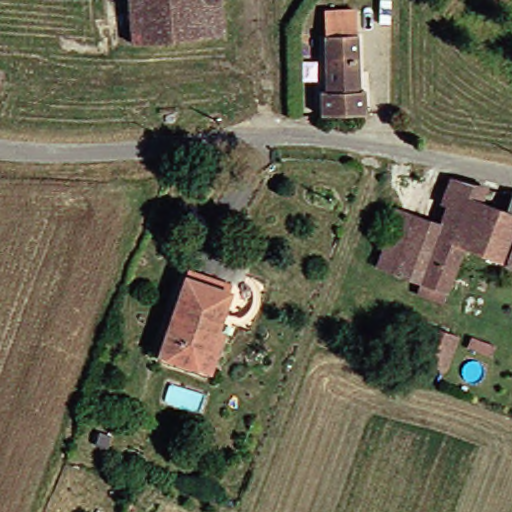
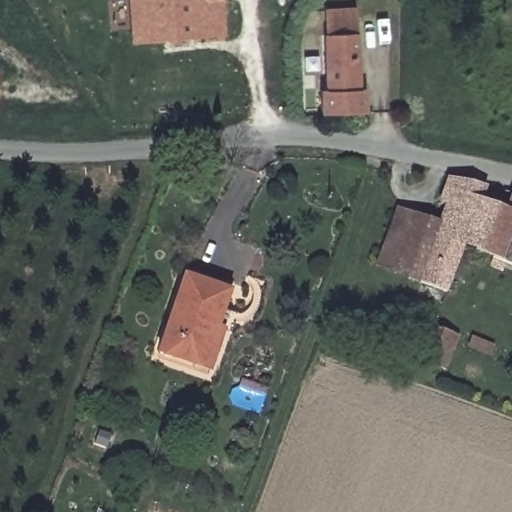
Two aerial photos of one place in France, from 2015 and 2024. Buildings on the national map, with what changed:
unchanged [(224,31),(131,39),(129,0),(223,0),(224,31)]
unchanged [(370,79),(372,104),(326,109),(325,83),(328,83),(321,6),(356,3),(364,80),(370,79)]
unchanged [(474,218),(468,244),(447,302),(420,291),(422,282),(414,279),(422,254),(429,256),(441,222),(447,205),(443,203),(452,178),(469,180),(461,207),(476,212),(474,218)]
unchanged [(510,206),(512,201),(512,260),(481,249),(489,221),(485,220),(492,200),(510,206)]
unchanged [(441,222),(429,256),(422,254),(414,279),(378,267),(400,208),(441,222)]
unchanged [(190,272),(232,289),(218,324),(225,328),(211,365),(161,345),(190,272)]
unchanged [(331,327),(342,305),(360,312),(350,334),(331,327)]
unchanged [(445,366),(425,358),(439,323),(459,329),(445,366)]

